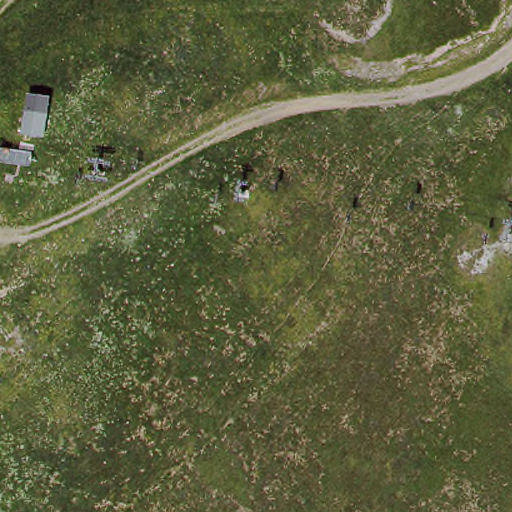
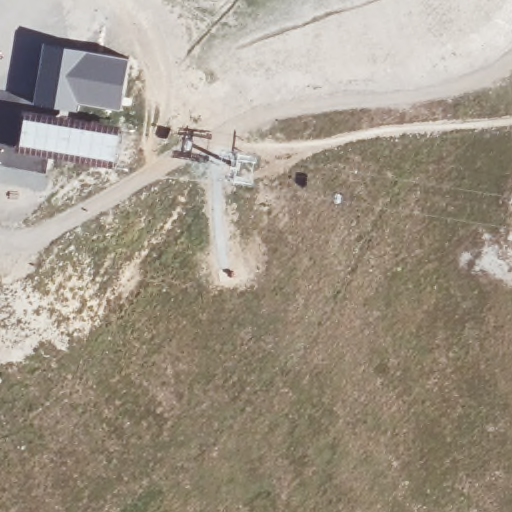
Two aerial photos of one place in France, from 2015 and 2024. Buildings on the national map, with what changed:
new [(44,42),(130,58),(122,109),(80,101),(78,111),(32,104),(44,42)]
demolished [(57,99),(53,140),(30,138),(31,97),(57,99)]
new [(25,118),(122,134),(117,161),(20,145),(25,118)]

